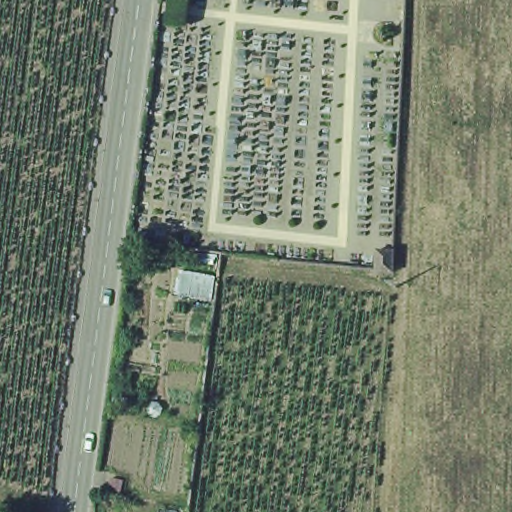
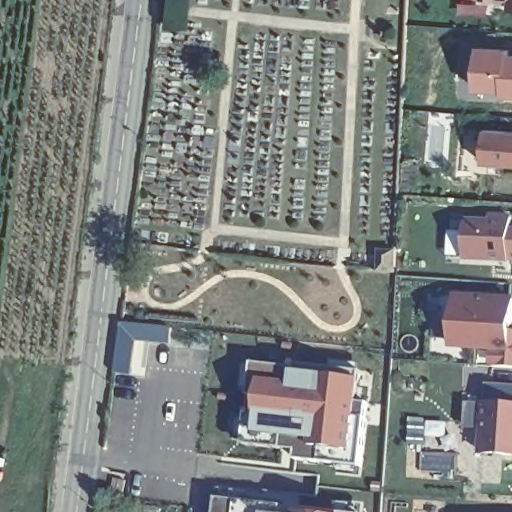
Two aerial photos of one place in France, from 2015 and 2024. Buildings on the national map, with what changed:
unchanged [(168,23),(169,0),(193,0),(190,23),(168,23)]
new [(503,91),(475,89),(478,47),(507,49),(507,54),(512,55),(512,95),(503,94),(503,91)]
new [(485,130),(512,132),(512,167),(482,164),(485,130)]
new [(490,221),(490,216),(510,217),(510,230),(512,230),(512,260),(508,260),(508,261),(463,258),(466,220),(490,221)]
unchanged [(377,247),(400,247),(401,275),(378,273),(377,247)]
new [(492,353),(451,350),(454,295),(512,299),(512,369),(491,367),(492,353)]
new [(297,367),(298,364),(362,371),(360,402),(368,404),(361,466),(357,512),(283,512),(285,492),(316,495),(317,477),(293,476),(295,460),(297,460),(299,444),(287,443),(286,448),(245,445),(254,363),(297,367)]
new [(486,383),(512,385),(512,458),(480,455),(486,383)]

